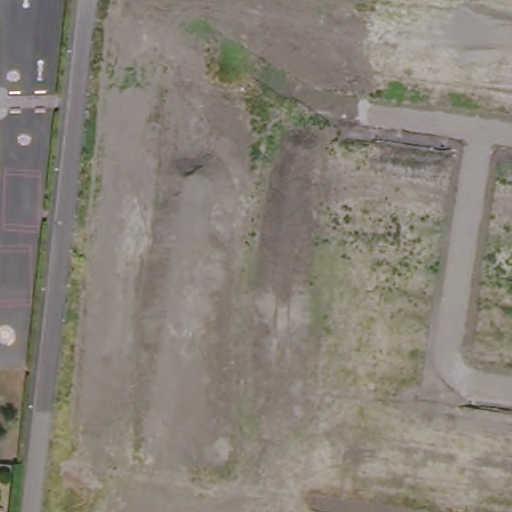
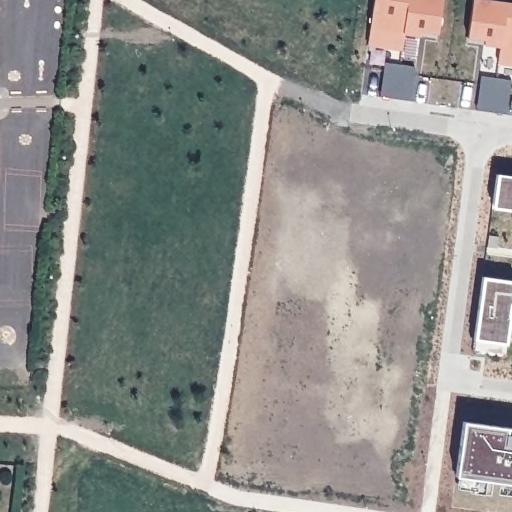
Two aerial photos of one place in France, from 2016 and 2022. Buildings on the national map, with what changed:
new [(374,0),(444,0),(441,32),(423,31),(422,35),(406,32),(404,48),(368,45),(374,0)]
new [(487,39),(468,36),(473,0),(485,0),(512,3),(512,62),(499,61),(501,45),(486,44),(487,39)]
new [(498,175),(512,176),(512,209),(494,207),(498,175)]
new [(484,277),(512,281),(512,343),(476,338),(484,277)]
new [(512,428),(512,482),(457,475),(464,422),(512,428)]

